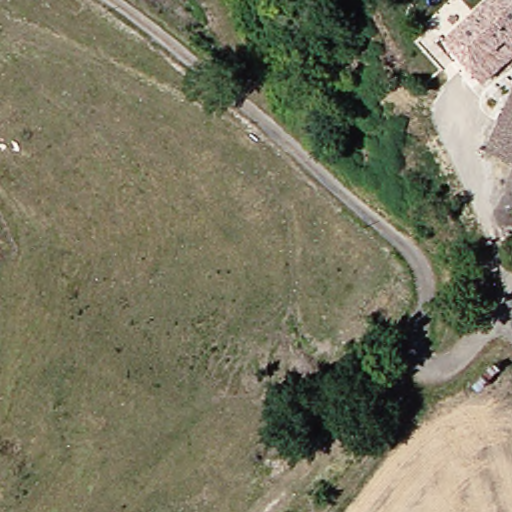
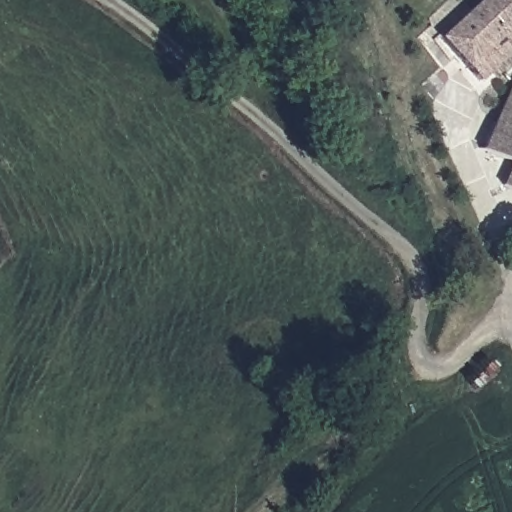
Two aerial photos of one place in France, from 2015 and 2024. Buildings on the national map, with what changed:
unchanged [(490,79),(447,38),(493,0),(512,0),(512,57),(490,79)]
unchanged [(512,93),(512,155),(490,145),(512,93)]
unchanged [(506,186),(512,170),(512,189),(506,186)]

